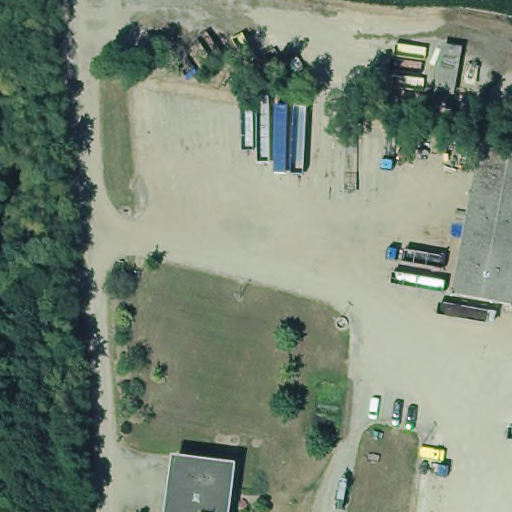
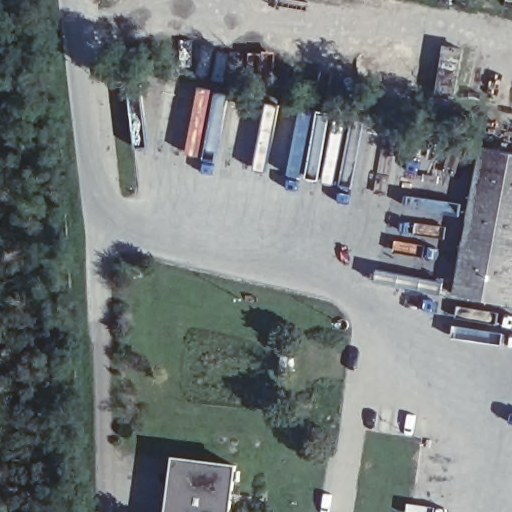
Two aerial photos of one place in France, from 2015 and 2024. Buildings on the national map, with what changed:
unchanged [(426,60),(445,60),(443,103),(442,112),(423,110),(423,100),(426,60)]
unchanged [(461,300),(467,150),(512,151),(512,303),(461,300)]
unchanged [(172,471),(175,452),(237,462),(229,512),(166,512),(172,471)]

